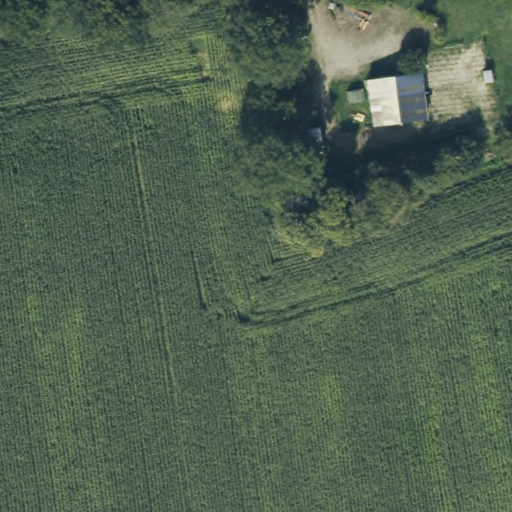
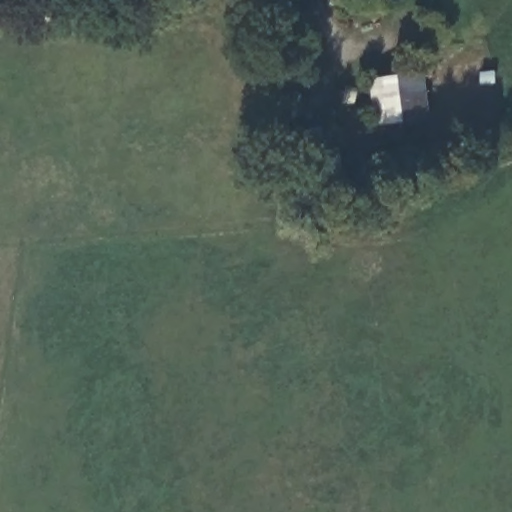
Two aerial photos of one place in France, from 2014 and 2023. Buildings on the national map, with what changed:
unchanged [(420,83),(426,128),(374,135),(368,90),(420,83)]
unchanged [(313,127),(316,145),(291,150),(287,131),(313,127)]

